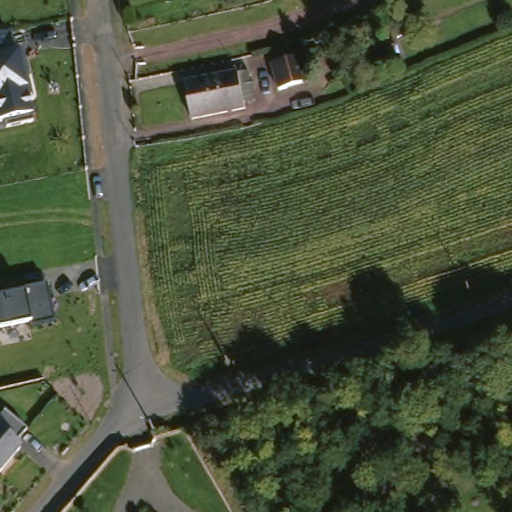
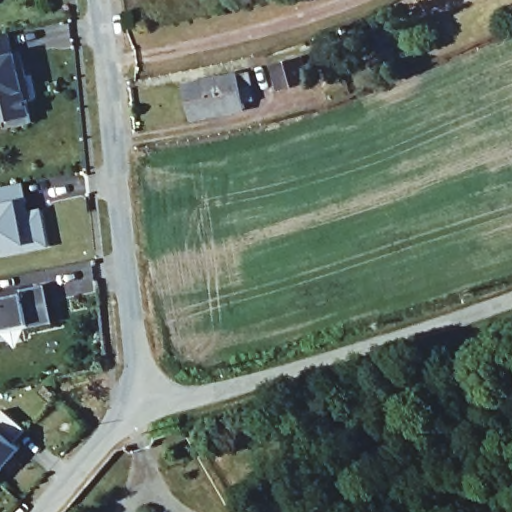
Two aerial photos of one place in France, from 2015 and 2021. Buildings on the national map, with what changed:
unchanged [(13,50),(19,48),(31,94),(23,99),(29,122),(0,126),(0,31),(7,29),(13,50)]
unchanged [(309,54),(314,81),(282,87),(277,60),(309,54)]
unchanged [(194,114),(187,80),(251,67),(254,81),(257,97),(246,99),(247,105),(194,114)]
new [(28,207),(18,209),(19,216),(25,219),(41,216),(48,250),(1,258),(0,251),(0,191),(24,187),(28,207)]
unchanged [(46,285),(53,323),(29,328),(28,324),(0,329),(0,296),(22,292),(46,285)]
unchanged [(24,431),(12,442),(19,448),(0,472),(0,416),(2,413),(24,431)]

